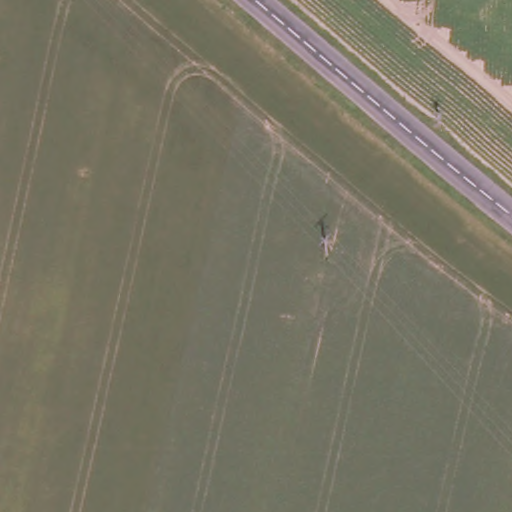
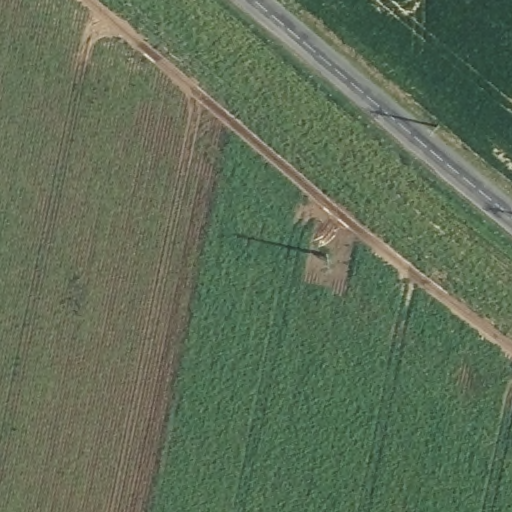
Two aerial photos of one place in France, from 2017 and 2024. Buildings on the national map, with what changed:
[]

